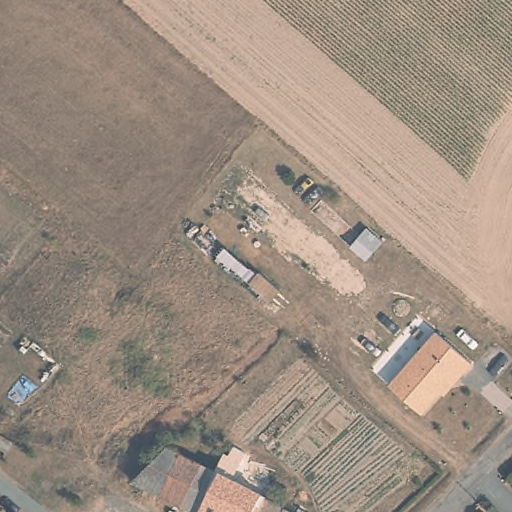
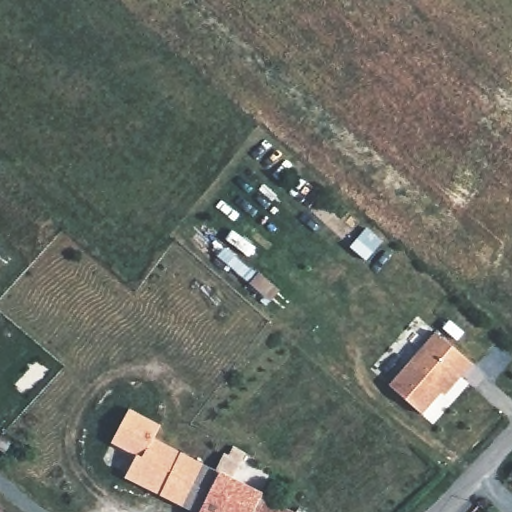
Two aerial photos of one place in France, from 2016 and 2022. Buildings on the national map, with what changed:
unchanged [(443,332),(480,364),(468,376),(465,373),(462,378),(460,377),(429,348),(443,332)]
unchanged [(434,402),(436,403),(427,413),(396,385),(429,348),(460,377),(434,402)]
new [(135,454),(111,441),(128,409),(158,427),(152,438),(179,452),(160,496),(125,478),(135,454)]
unchanged [(0,453),(0,436),(9,444),(0,453)]
unchanged [(179,452),(209,465),(207,471),(185,508),(160,496),(179,452)]
unchanged [(207,471),(217,476),(225,459),(229,461),(234,452),(249,460),(236,482),(264,498),(256,512),(186,512),(184,511),(207,471)]
unchanged [(289,512),(256,512),(264,498),(289,512)]
unchanged [(0,504),(1,505),(6,512),(0,512),(0,504)]

